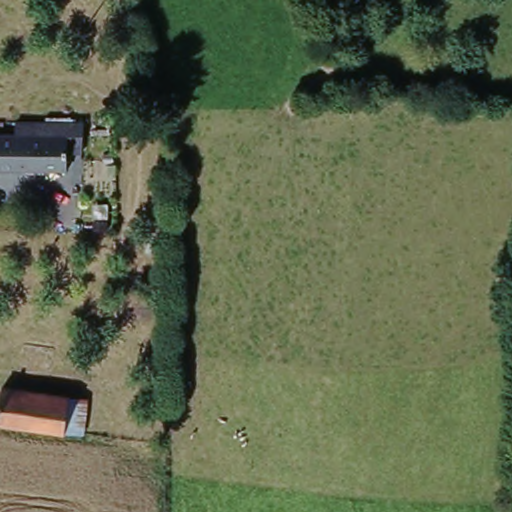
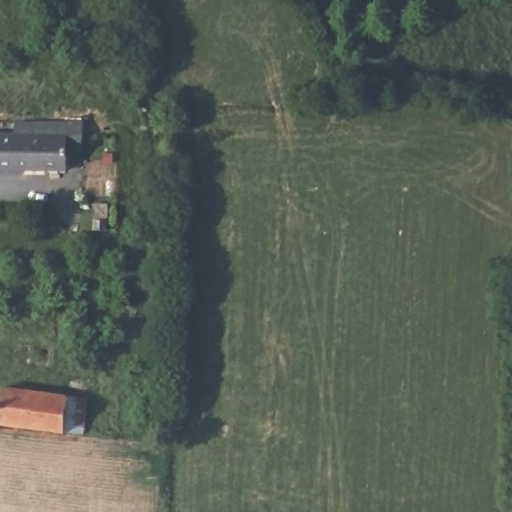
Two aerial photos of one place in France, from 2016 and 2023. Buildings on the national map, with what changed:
unchanged [(33,117),(51,115),(53,126),(65,127),(66,161),(0,161),(0,127),(32,127),(33,117)]
unchanged [(90,432),(75,430),(8,423),(14,386),(80,395),(96,397),(90,432)]

